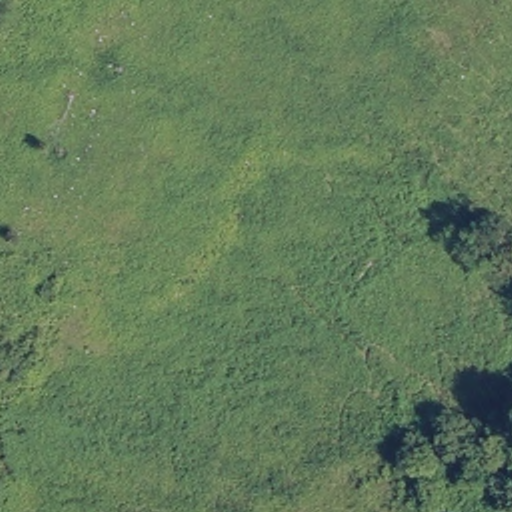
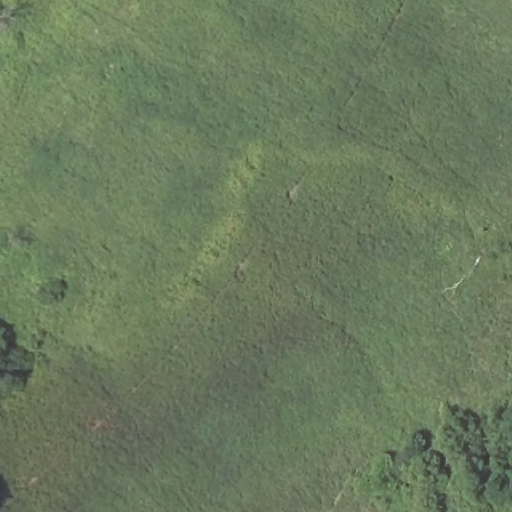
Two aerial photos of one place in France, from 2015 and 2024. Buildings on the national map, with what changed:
unchanged [(482,418),(512,417),(512,484),(488,478),(482,418)]

